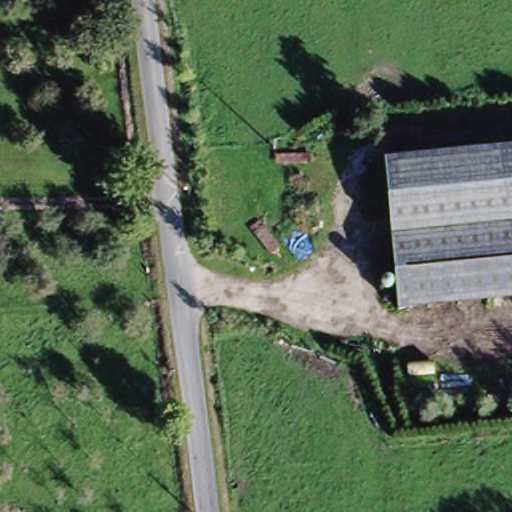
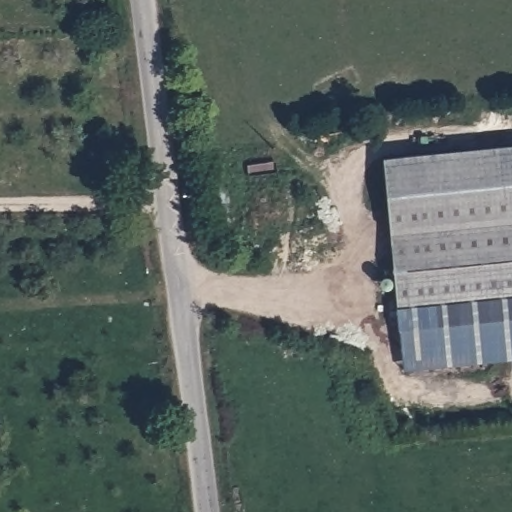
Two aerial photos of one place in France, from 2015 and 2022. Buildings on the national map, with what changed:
unchanged [(512,149),(512,300),(400,316),(379,168),(512,149)]
new [(512,320),(512,363),(406,373),(399,331),(512,320)]

